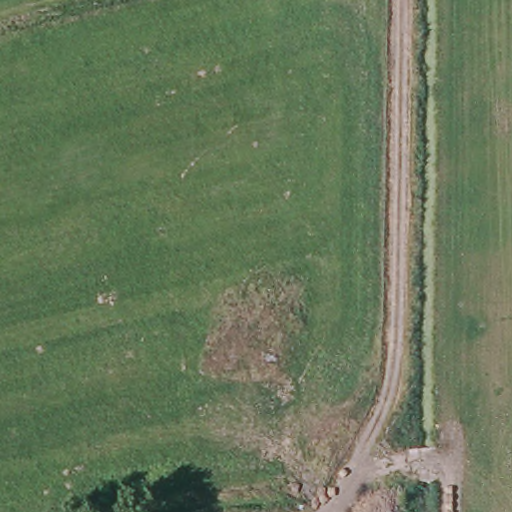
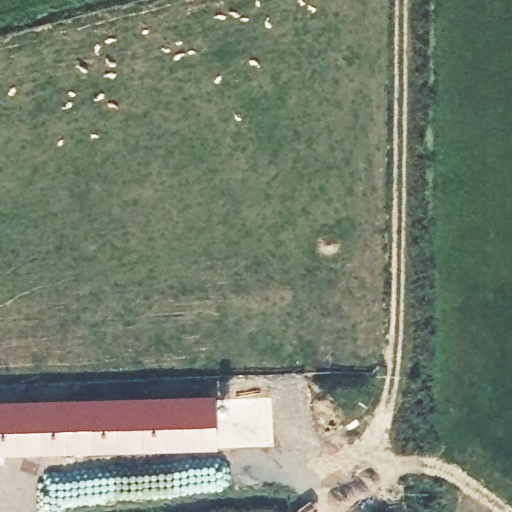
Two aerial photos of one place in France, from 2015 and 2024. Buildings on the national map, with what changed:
new [(217,446),(0,451),(0,399),(217,394),(217,446)]

